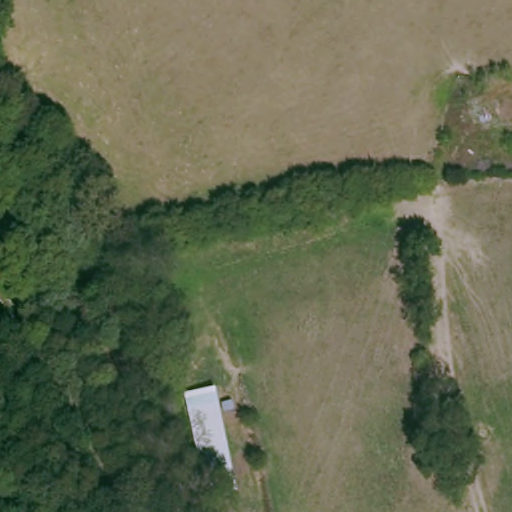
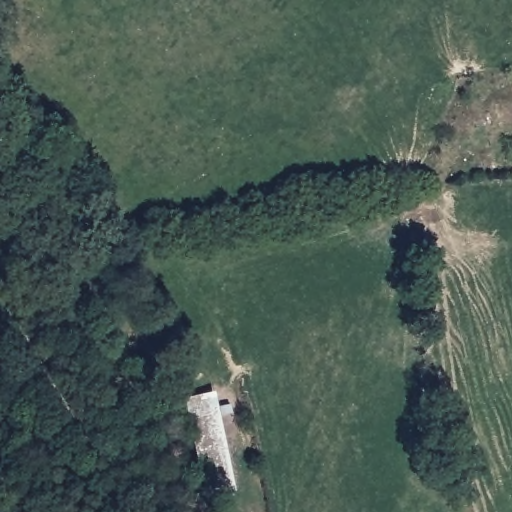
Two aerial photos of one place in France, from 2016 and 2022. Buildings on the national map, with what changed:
unchanged [(187,400),(218,392),(221,406),(232,408),(236,418),(224,417),(238,498),(209,503),(187,400)]

